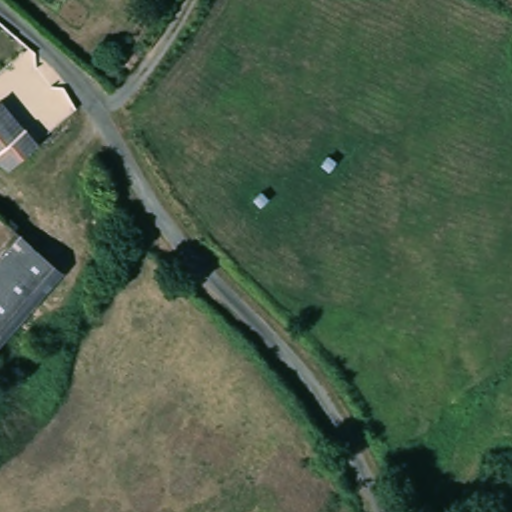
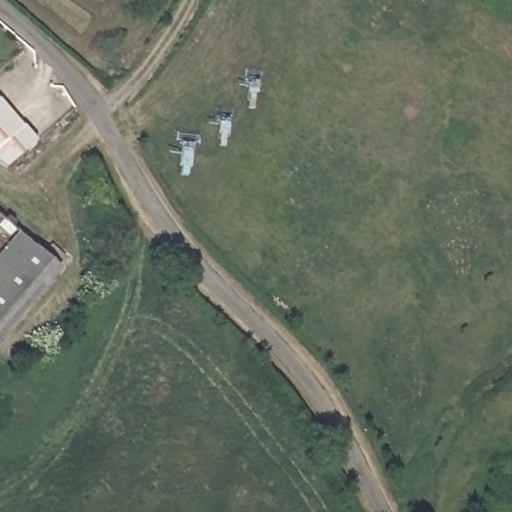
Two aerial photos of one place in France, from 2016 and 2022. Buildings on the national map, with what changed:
unchanged [(30,146),(26,149),(22,152),(18,156),(17,156),(15,158),(11,161),(7,165),(1,170),(0,169),(0,111),(30,146)]
unchanged [(0,343),(0,253),(20,230),(62,271),(0,343)]

